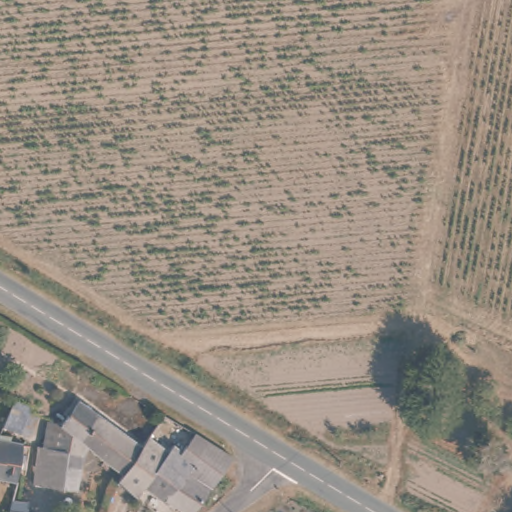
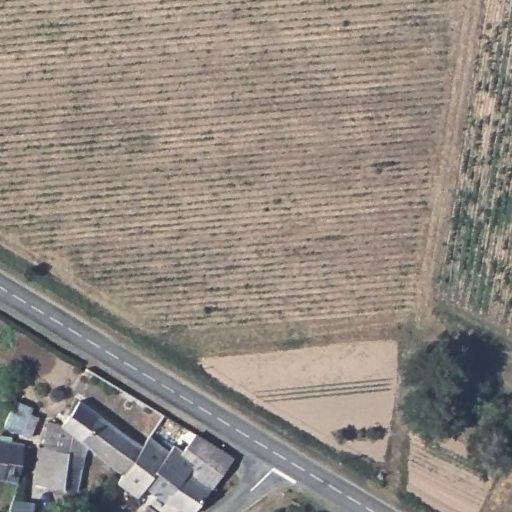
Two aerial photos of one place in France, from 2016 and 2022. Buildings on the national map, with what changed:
unchanged [(34,410),(21,437),(3,428),(15,401),(34,410)]
unchanged [(142,449),(122,476),(89,452),(83,458),(80,491),(31,486),(35,450),(42,451),(44,440),(52,441),(53,428),(61,429),(80,403),(142,449)]
unchanged [(185,453),(197,437),(232,459),(193,512),(180,512),(147,487),(139,498),(117,483),(122,476),(142,449),(150,438),(165,450),(170,443),(185,453)]
unchanged [(7,482),(0,481),(0,443),(10,445),(7,482)]

